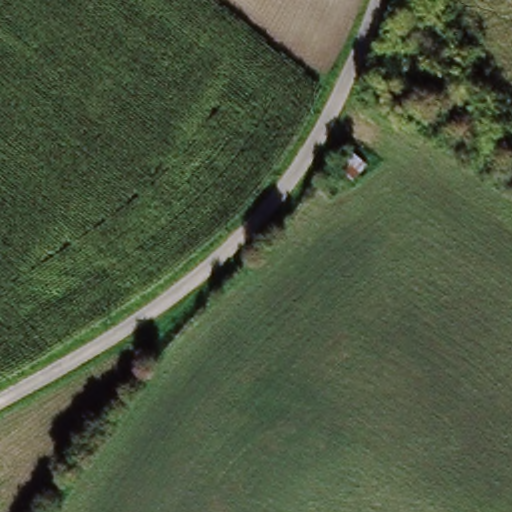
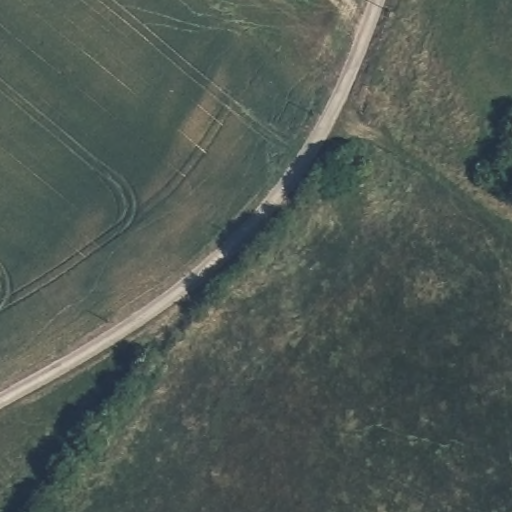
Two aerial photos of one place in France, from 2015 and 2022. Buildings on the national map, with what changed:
unchanged [(372,168),(352,183),(330,167),(349,146),(372,168)]

